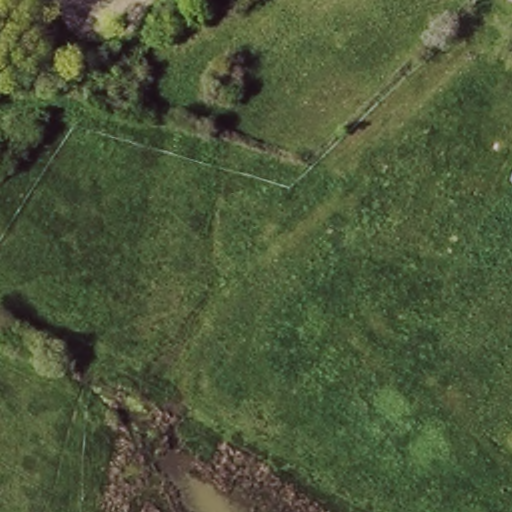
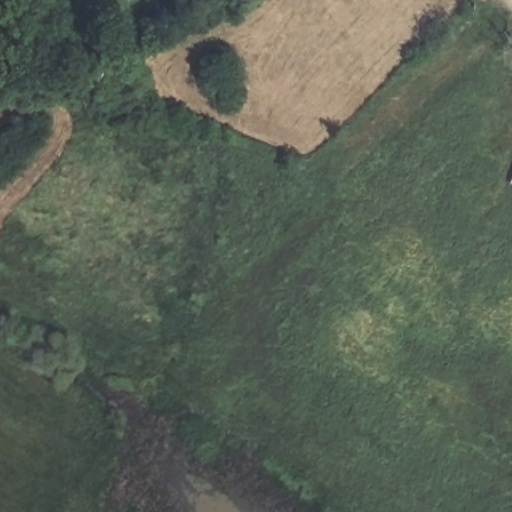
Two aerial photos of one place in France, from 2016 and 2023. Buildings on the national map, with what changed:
unchanged [(510,183),(512,177),(512,184),(510,183)]

